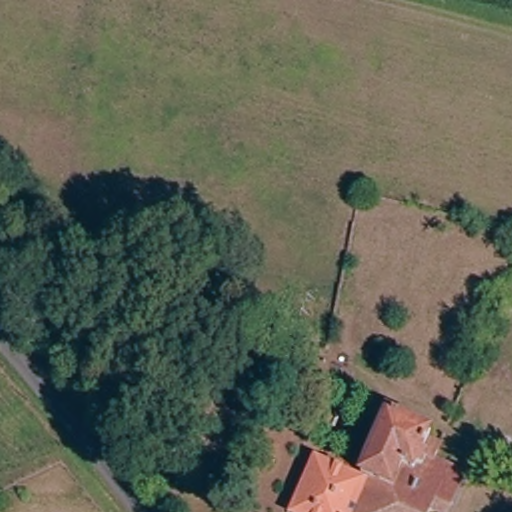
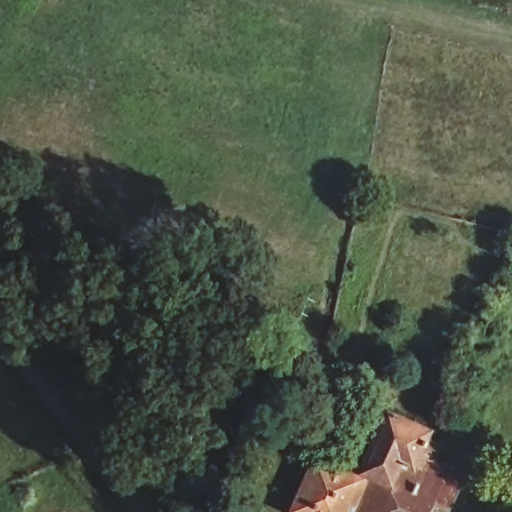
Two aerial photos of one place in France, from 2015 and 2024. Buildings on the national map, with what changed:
unchanged [(13,226),(0,234),(0,210),(4,207),(13,226)]
unchanged [(313,464),(337,473),(353,473),(379,411),(430,433),(424,451),(400,503),(349,485),(338,512),(296,512),(313,464)]
unchanged [(349,485),(400,503),(424,451),(435,455),(453,464),(438,512),(338,512),(349,485)]

